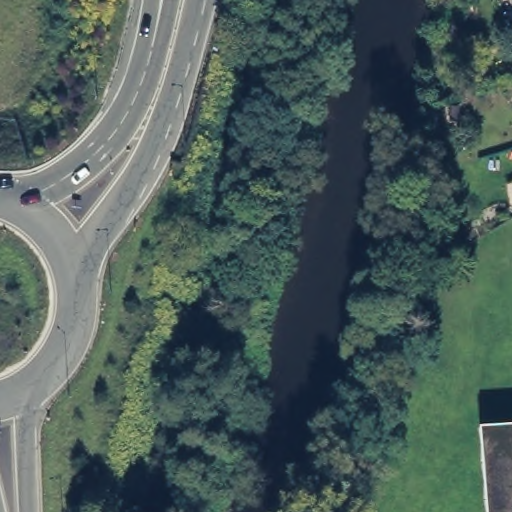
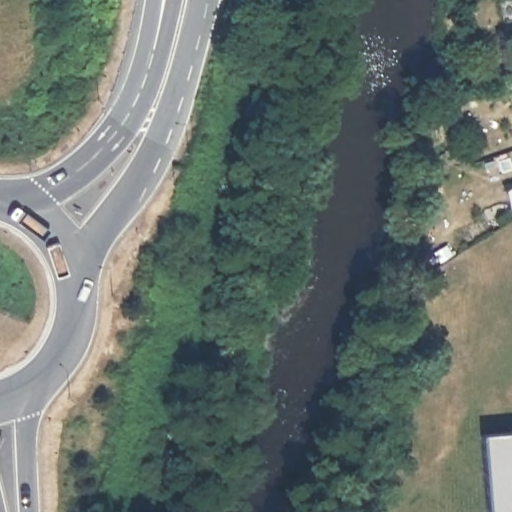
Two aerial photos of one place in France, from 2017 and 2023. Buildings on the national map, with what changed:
unchanged [(482,432),(512,429),(512,512),(488,512),(482,432)]

